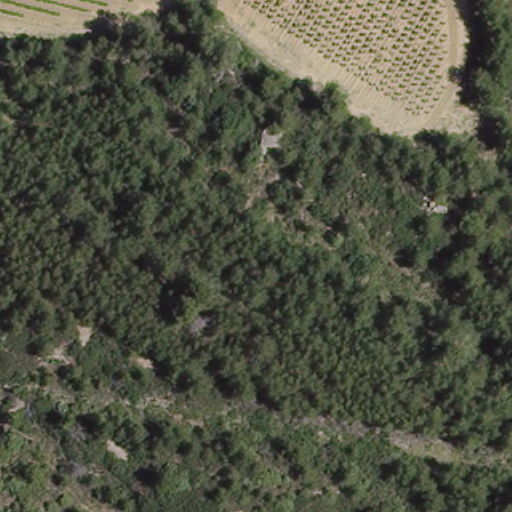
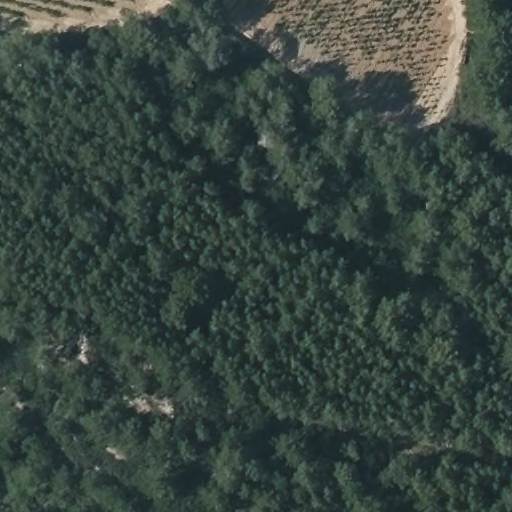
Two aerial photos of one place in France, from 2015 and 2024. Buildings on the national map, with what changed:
unchanged [(263,127),(306,152),(289,180),(247,155),(263,127)]

